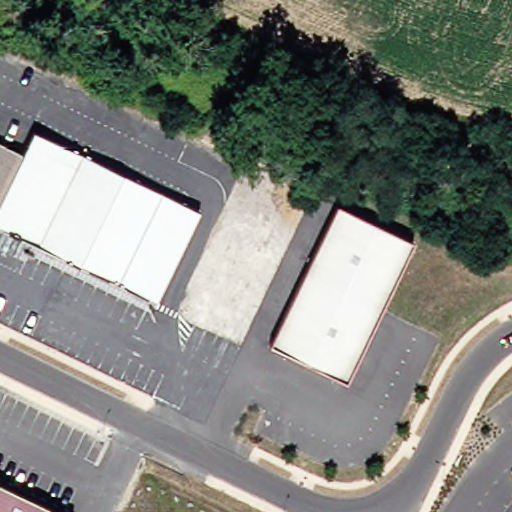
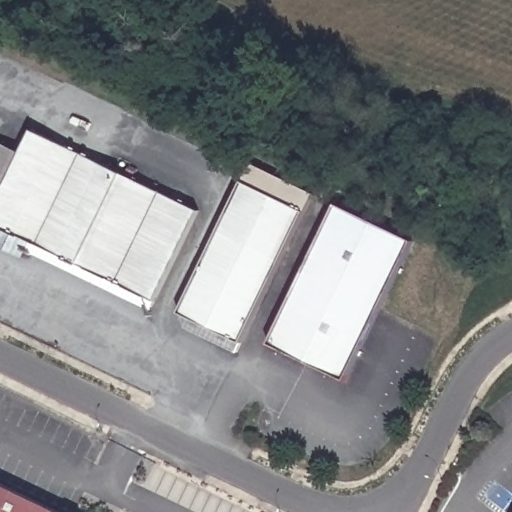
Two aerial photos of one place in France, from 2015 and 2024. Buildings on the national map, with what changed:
unchanged [(0,194),(19,153),(30,130),(30,131),(120,174),(76,265),(26,242),(19,256),(0,247),(0,194)]
unchanged [(0,194),(0,144),(19,153),(0,194)]
unchanged [(198,210),(154,303),(76,265),(120,174),(198,210)]
new [(242,184),(305,212),(242,341),(180,315),(242,184)]
unchanged [(375,224),(408,239),(345,380),(267,346),(330,205),(375,224)]
unchanged [(0,512),(0,486),(55,512),(0,512)]

